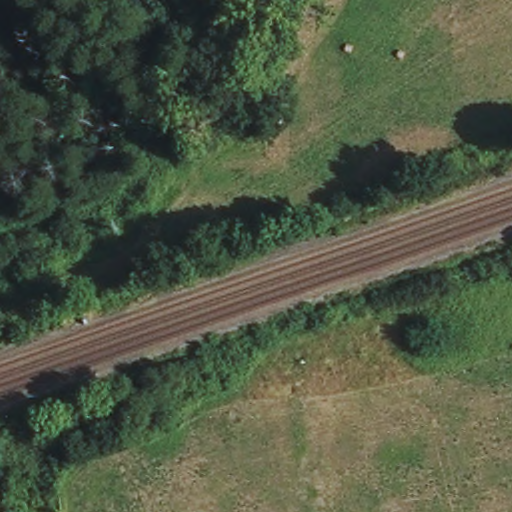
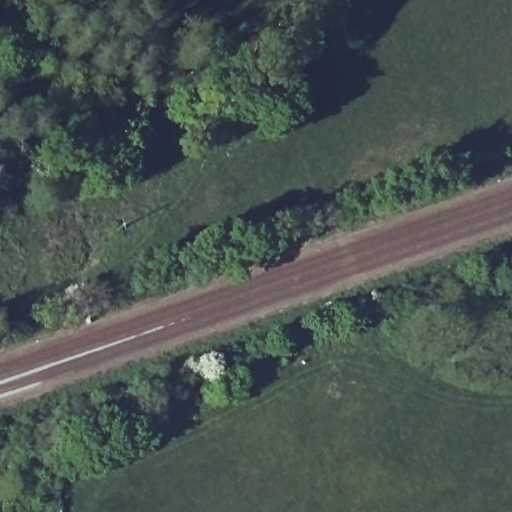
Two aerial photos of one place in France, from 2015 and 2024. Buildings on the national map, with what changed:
[]

